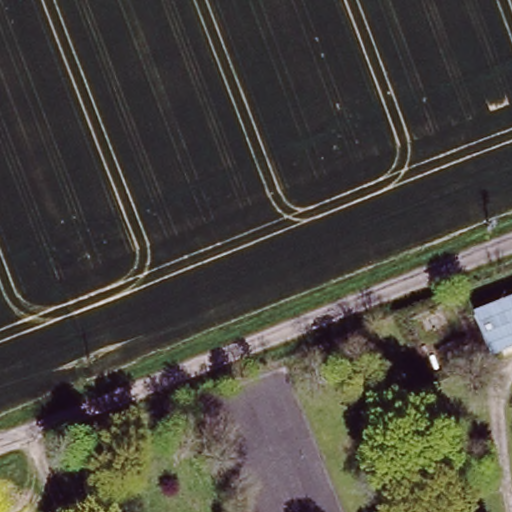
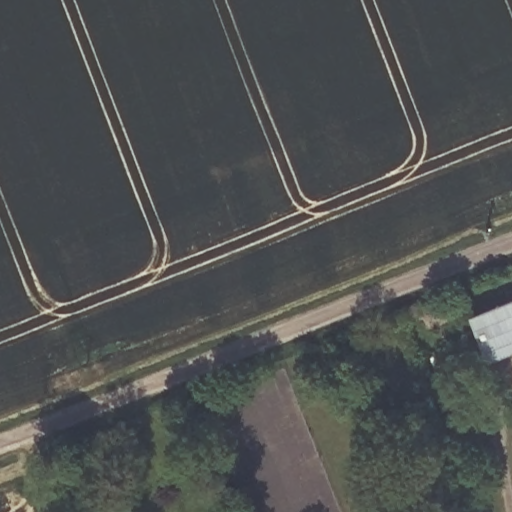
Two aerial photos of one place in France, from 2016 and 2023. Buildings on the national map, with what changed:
unchanged [(475,319),(512,302),(512,346),(492,355),(475,319)]

